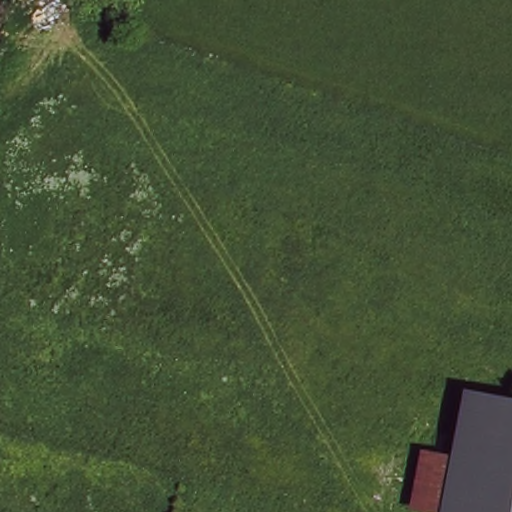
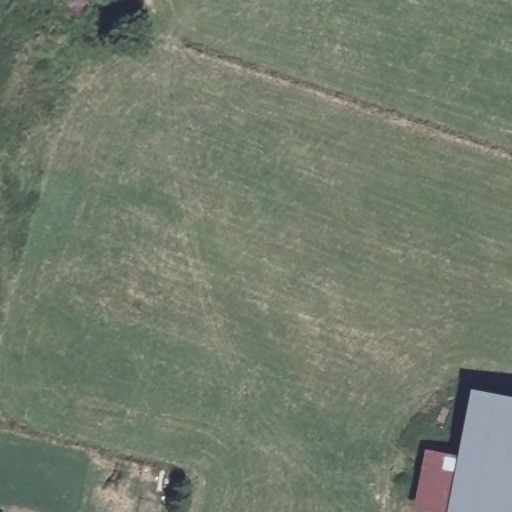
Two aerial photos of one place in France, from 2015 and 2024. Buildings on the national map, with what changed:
unchanged [(512,405),(512,512),(459,512),(470,460),(482,400),(512,405)]
unchanged [(459,512),(421,512),(419,511),(431,452),(470,460),(459,512)]

